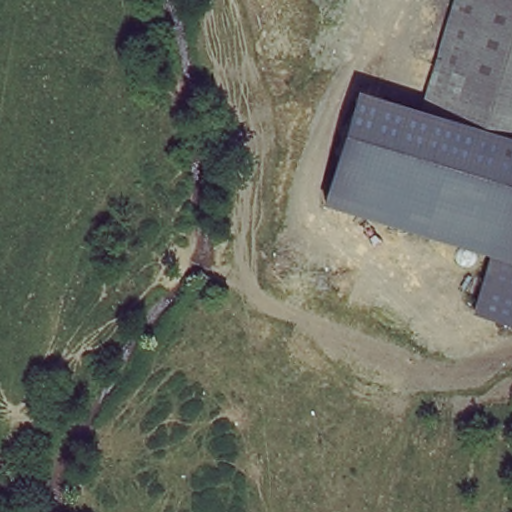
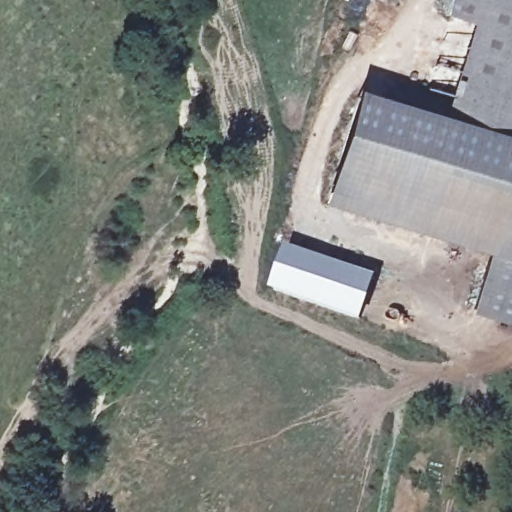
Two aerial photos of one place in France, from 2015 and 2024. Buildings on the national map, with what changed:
unchanged [(455,149),(460,126),(421,111),(450,0),(512,0),(512,163),(455,149)]
unchanged [(470,311),(489,253),(317,201),(350,90),(421,111),(460,126),(455,149),(512,163),(512,322),(470,311)]
new [(376,279),(362,323),(272,292),(286,248),(376,279)]

